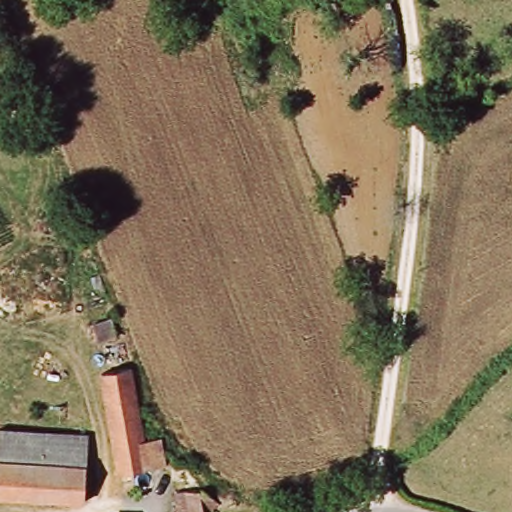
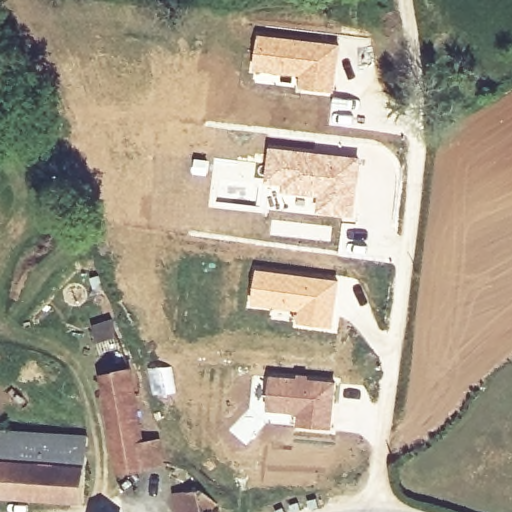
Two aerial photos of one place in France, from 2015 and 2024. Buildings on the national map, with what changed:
new [(258,32),(341,44),(335,92),(296,88),(297,78),(253,73),(258,32)]
new [(269,145),(362,158),(354,218),(316,212),(319,197),(283,189),(284,184),(265,180),(269,145)]
new [(256,267),(340,280),(333,328),(291,322),(292,311),(250,307),(256,267)]
new [(269,374),(337,381),(332,430),(296,426),(297,414),(266,410),(269,374)]
unchanged [(95,383),(123,375),(147,446),(166,438),(168,462),(127,479),(95,383)]
unchanged [(89,438),(86,471),(0,464),(0,429),(89,438)]
unchanged [(86,471),(83,504),(45,501),(0,498),(0,464),(86,471)]
unchanged [(209,506),(208,512),(173,512),(174,487),(186,486),(200,501),(209,506)]

